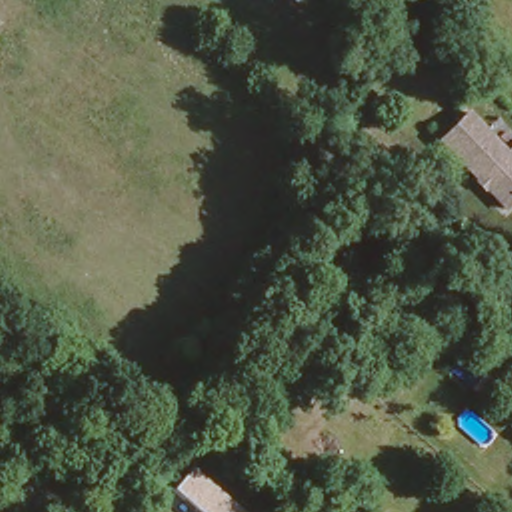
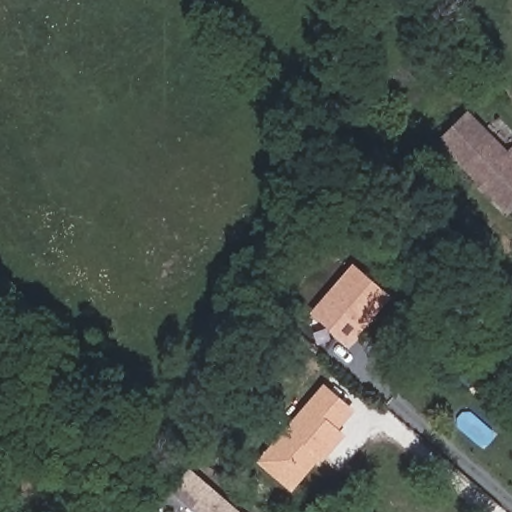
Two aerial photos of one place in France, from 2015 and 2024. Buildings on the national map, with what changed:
unchanged [(424,140),(465,100),(509,144),(512,140),(512,195),(495,212),(424,140)]
new [(351,268),(386,296),(347,343),(313,313),(351,268)]
new [(354,410),(338,429),(345,435),(322,462),(318,459),(290,491),(256,462),(323,383),(354,410)]
unchanged [(172,490),(192,467),(242,512),(198,512),(172,490)]
unchanged [(332,510),(335,512),(331,512),(332,510)]

